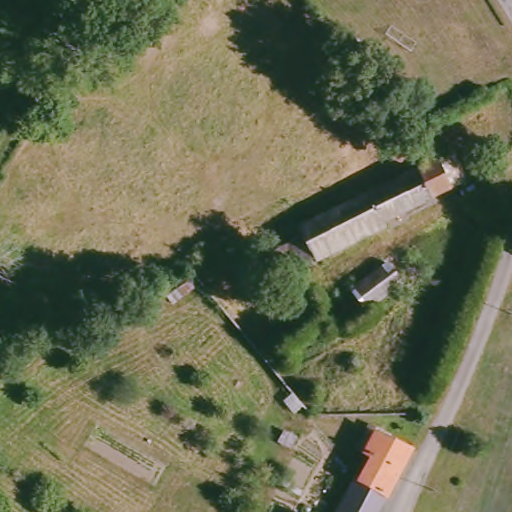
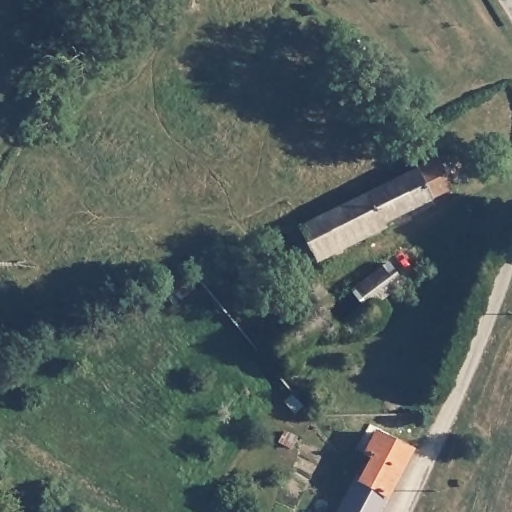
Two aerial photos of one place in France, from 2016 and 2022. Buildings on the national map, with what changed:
unchanged [(296,244),(299,242),(293,231),(307,224),(308,225),(444,162),(446,161),(448,160),(448,161),(449,162),(466,155),(475,172),(475,174),(476,175),(461,182),(462,185),(463,187),(394,221),(396,226),(325,260),(324,258),(307,266),(296,244)]
unchanged [(350,301),(340,287),(351,282),(343,270),(350,266),(358,278),(388,265),(393,271),(399,268),(412,287),(374,315),(364,321),(350,301)]
unchanged [(357,476),(368,455),(362,451),(373,430),(414,452),(382,512),(335,512),(355,475),(357,476)]

